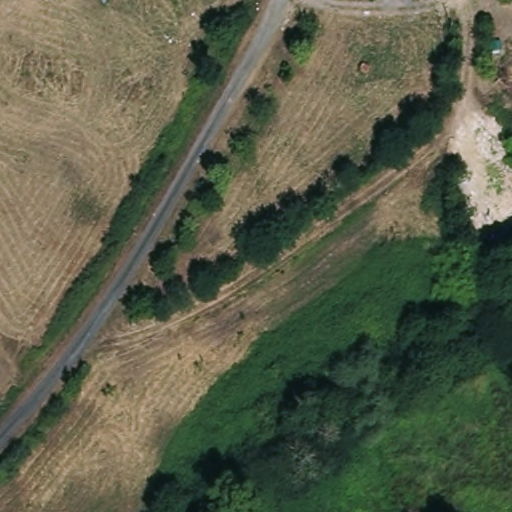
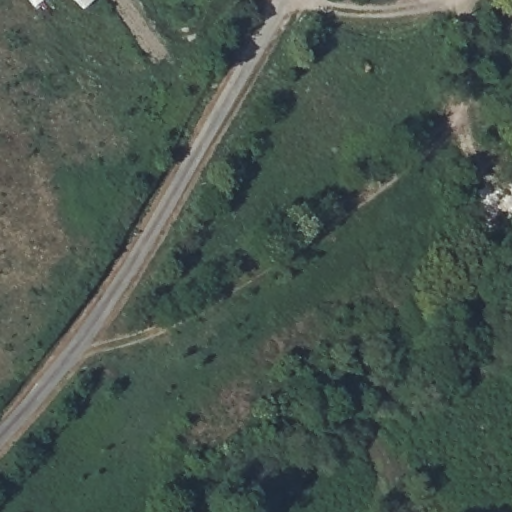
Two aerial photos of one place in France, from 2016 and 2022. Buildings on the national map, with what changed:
[]

